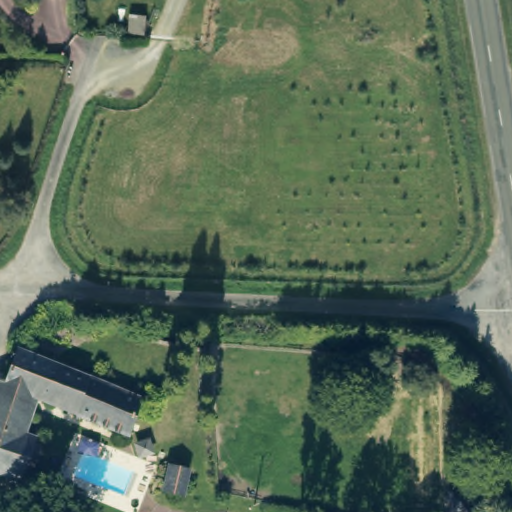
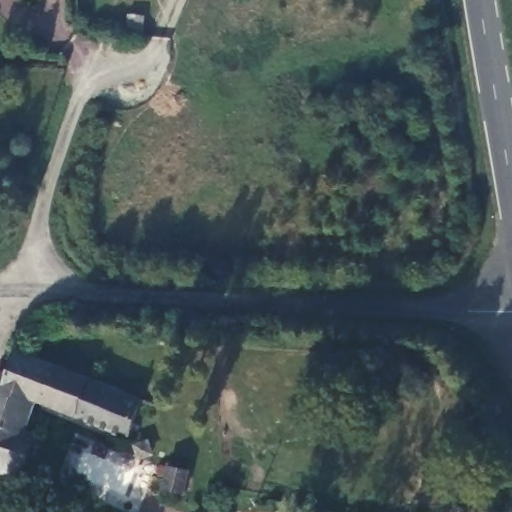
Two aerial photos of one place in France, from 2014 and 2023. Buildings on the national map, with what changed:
unchanged [(80,375),(160,409),(147,443),(35,398),(4,385),(17,350),(80,375)]
unchanged [(4,385),(35,398),(20,435),(0,427),(0,384),(4,385)]
unchanged [(20,435),(31,440),(15,481),(0,475),(0,427),(20,435)]
unchanged [(172,465),(191,470),(186,495),(167,492),(172,465)]

